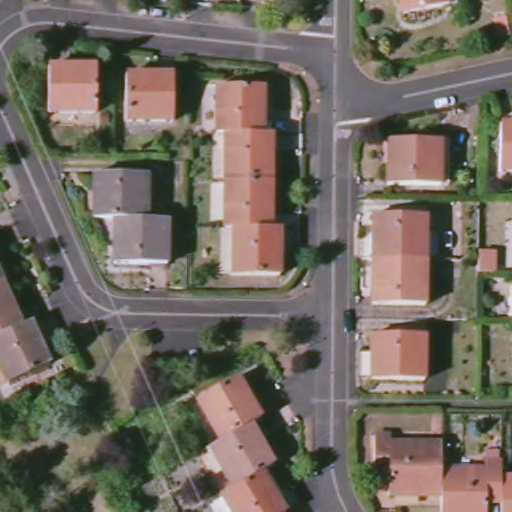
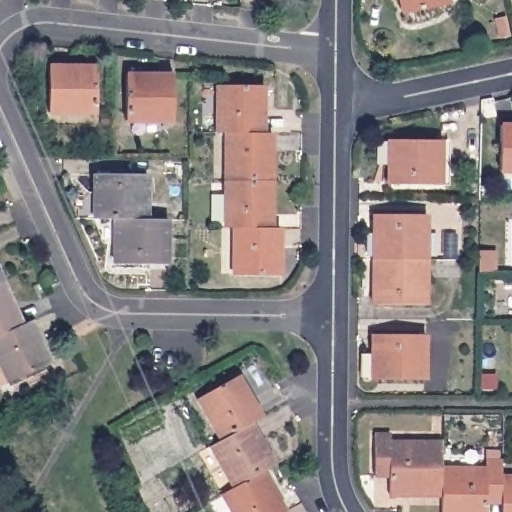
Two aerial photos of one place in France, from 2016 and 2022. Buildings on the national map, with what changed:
unchanged [(403,16),(399,0),(446,0),(447,7),(403,16)]
unchanged [(95,65),(95,110),(48,110),(48,65),(95,65)]
unchanged [(173,76),(173,122),(125,122),(128,76),(173,76)]
unchanged [(218,85),(264,85),(264,132),(259,132),(226,131),(218,131),(218,85)]
unchanged [(512,174),(499,174),(500,127),(512,127),(512,174)]
unchanged [(226,131),(259,132),(264,132),(271,132),(271,181),(225,180),(226,131)]
unchanged [(441,140),(441,185),(391,185),(391,140),(441,140)]
unchanged [(145,175),(144,220),(113,219),(113,220),(91,220),(93,174),(145,175)]
unchanged [(271,181),(269,228),(262,228),(256,228),(253,228),(231,228),(223,228),(225,180),(271,181)]
unchanged [(374,212),(424,213),(424,258),(404,258),(373,258),(374,212)]
unchanged [(144,220),(157,220),(165,220),(165,262),(113,262),(113,220),(113,219),(144,220)]
unchanged [(253,228),(256,228),(262,228),(269,228),(276,229),(276,276),(229,276),(231,228),(253,228)]
unchanged [(404,258),(424,258),(424,303),(371,303),(373,258),(404,258)]
unchanged [(4,280),(0,282),(0,271),(4,280)]
unchanged [(4,280),(23,323),(0,333),(0,282),(4,280)]
unchanged [(23,323),(30,320),(50,365),(8,382),(0,363),(0,333),(23,323)]
unchanged [(422,335),(422,380),(371,380),(371,335),(422,335)]
unchanged [(256,418),(238,428),(226,435),(203,393),(243,370),(266,412),(256,418)]
unchanged [(226,435),(238,428),(256,418),(279,461),(269,466),(268,467),(260,471),(250,477),(238,483),(215,441),(226,435)]
unchanged [(441,472),(441,478),(441,500),(390,500),(389,480),(374,480),(374,439),(391,438),(390,447),(442,447),(441,472)]
unchanged [(227,490),(238,483),(250,477),(260,471),(268,467),(269,466),(293,508),(286,512),(239,512),(227,490)]
unchanged [(486,472),(486,466),(502,466),(501,481),(501,487),(501,506),(484,506),(484,512),(440,512),(441,500),(441,478),(441,472),(486,472)]
unchanged [(512,512),(501,512),(501,508),(501,506),(501,487),(501,481),(512,481),(512,512)]

